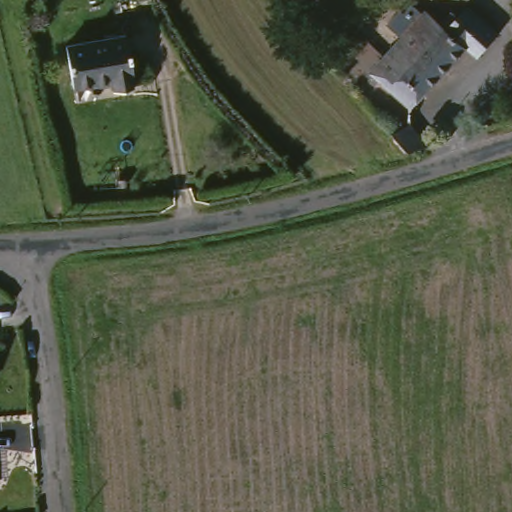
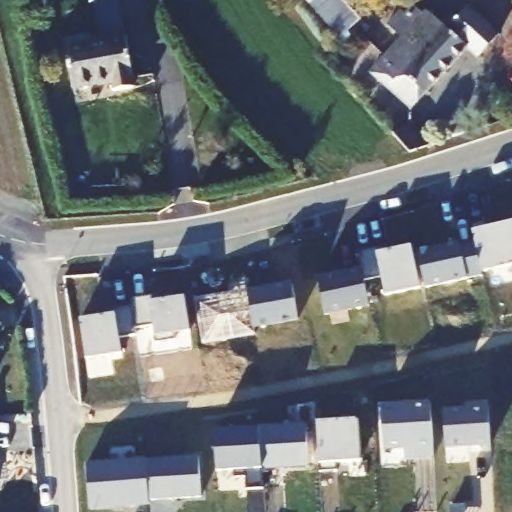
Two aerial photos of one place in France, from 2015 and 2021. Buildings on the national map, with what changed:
unchanged [(361,90),(370,79),(369,78),(376,71),(367,63),(413,12),(422,20),(427,15),(441,29),(452,17),(457,22),(468,11),(500,41),(478,63),(467,53),(410,115),(379,87),(368,98),(361,90)]
unchanged [(128,84),(127,84),(128,93),(109,96),(107,87),(67,94),(60,51),(121,40),(128,84)]
unchanged [(430,147),(408,154),(392,132),(412,123),(430,147)]
new [(458,242),(458,245),(473,241),(482,275),(425,288),(417,251),(458,242)]
new [(387,245),(387,251),(410,246),(418,288),(384,295),(381,277),(363,281),(361,269),(357,251),(387,245)]
new [(361,269),(363,281),(368,305),(325,314),(317,278),(361,269)]
new [(229,293),(227,284),(245,281),(246,291),(252,326),(254,334),(201,343),(194,299),(229,293)]
new [(290,283),(297,318),(252,326),(246,291),(290,283)]
new [(157,293),(159,298),(182,295),(187,328),(170,331),(171,338),(154,340),(152,323),(134,326),(130,304),(129,297),(157,293)]
new [(102,314),(101,309),(130,304),(134,326),(135,333),(117,335),(120,350),(85,355),(79,318),(102,314)]
new [(466,409),(465,405),(487,404),(490,445),(445,448),(442,411),(466,409)]
new [(403,448),(383,450),(380,408),(430,405),(432,457),(416,458),(405,458),(403,448)]
new [(356,420),(358,461),(335,462),(336,471),(318,472),(316,422),(356,420)]
new [(305,425),(307,465),(261,468),(258,428),(305,425)]
new [(258,428),(261,468),(262,488),(244,489),(244,477),(232,478),(231,470),(216,471),(214,430),(258,428)]
new [(197,458),(200,498),(147,501),(145,461),(197,458)]
new [(145,461),(147,501),(147,504),(89,508),(86,464),(145,461)]
new [(447,504),(462,503),(463,512),(447,512),(447,504)]

